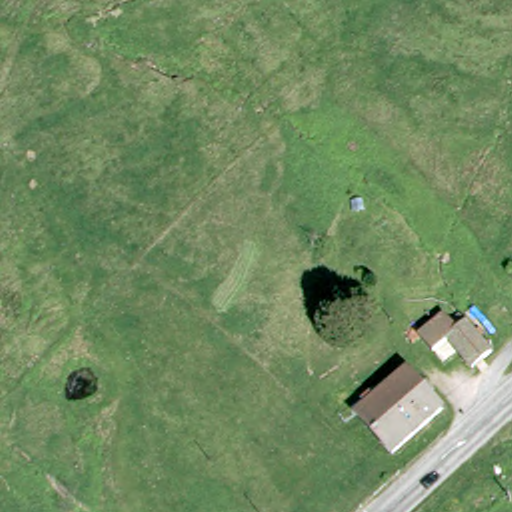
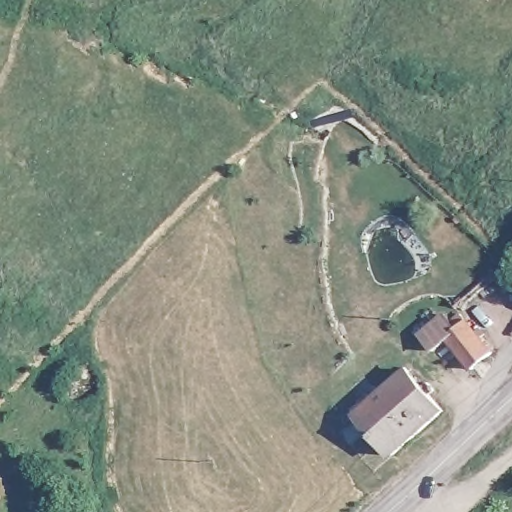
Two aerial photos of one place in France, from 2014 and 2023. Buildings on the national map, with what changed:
unchanged [(442,312),(467,338),(452,350),(440,360),(417,335),(442,312)]
unchanged [(452,350),(467,338),(472,333),(498,363),(480,380),(452,350)]
unchanged [(449,417),(400,460),(366,422),(359,414),(372,402),(380,410),(396,396),(392,392),(409,375),(414,380),(417,378),(449,417)]

